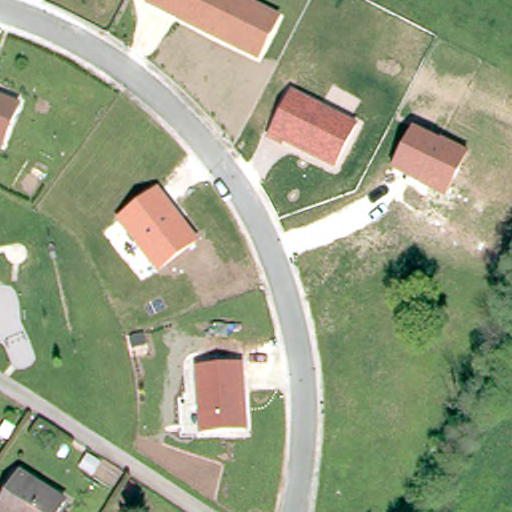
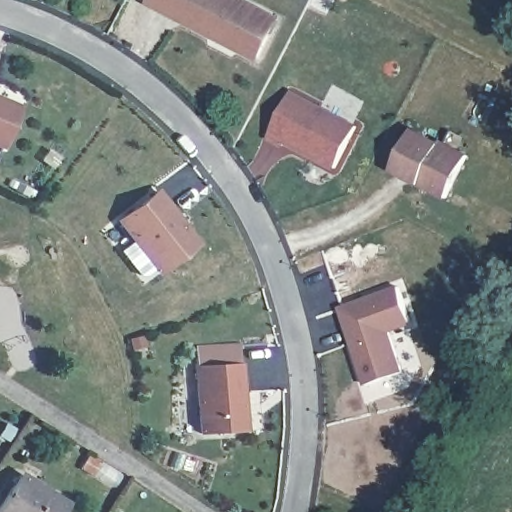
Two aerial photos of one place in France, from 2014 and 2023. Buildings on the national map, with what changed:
unchanged [(258,61),(145,5),(147,0),(249,0),(282,17),(258,61)]
unchanged [(267,137),(290,90),(356,126),(335,167),(267,137)]
unchanged [(0,144),(0,97),(21,106),(5,146),(0,144)]
unchanged [(390,170),(412,127),(470,156),(445,200),(390,170)]
unchanged [(197,242),(158,274),(118,219),(157,189),(197,242)]
new [(412,325),(391,332),(405,372),(366,387),(338,307),(398,286),(412,325)]
unchanged [(197,432),(195,365),(194,347),(241,344),(242,363),(246,430),(197,432)]
unchanged [(58,512),(0,512),(0,505),(19,473),(64,502),(58,512)]

